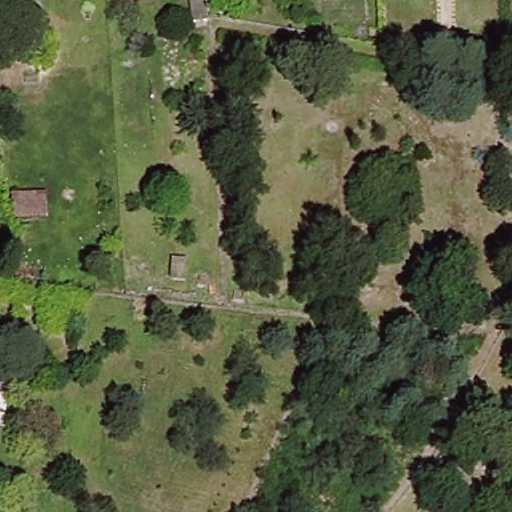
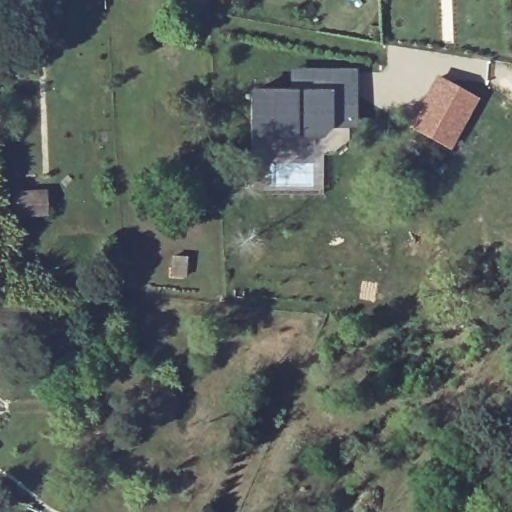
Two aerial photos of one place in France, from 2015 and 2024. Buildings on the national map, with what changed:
new [(248,87),(287,87),(288,68),(356,67),(357,127),(334,130),(322,137),(318,139),(248,140),(248,87)]
new [(435,74),(478,97),(448,151),(406,127),(435,74)]
unchanged [(50,216),(17,216),(18,194),(49,193),(50,216)]
unchanged [(171,253),(191,254),(190,277),(171,276),(171,253)]
unchanged [(10,407),(0,406),(0,368),(14,368),(10,407)]

